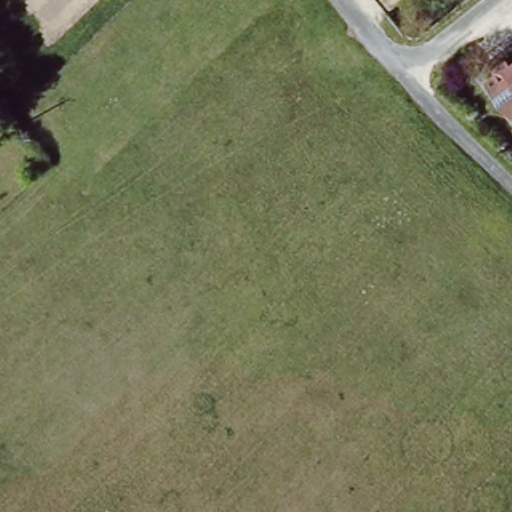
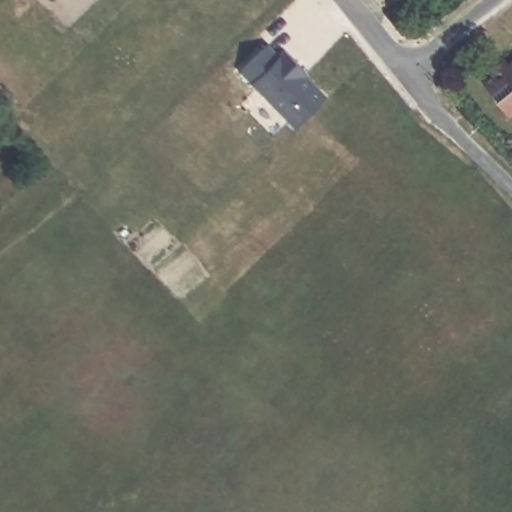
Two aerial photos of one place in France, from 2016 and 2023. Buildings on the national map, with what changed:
new [(268,44),(279,55),(286,50),(298,63),(296,65),(327,96),(296,127),(241,70),(268,44)]
unchanged [(485,78),(512,58),(512,112),(485,78)]

